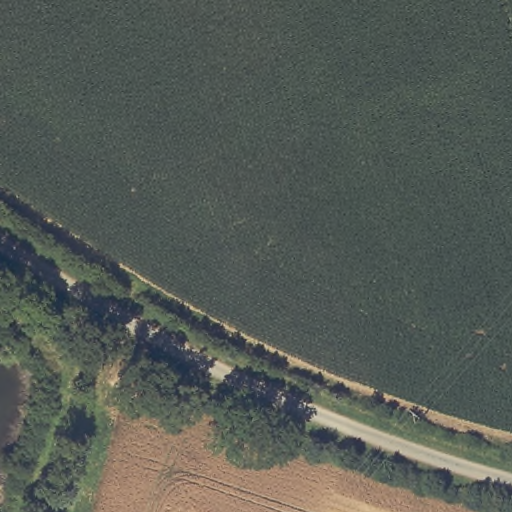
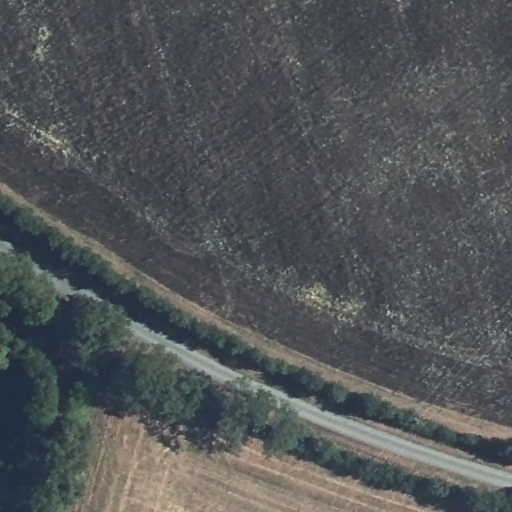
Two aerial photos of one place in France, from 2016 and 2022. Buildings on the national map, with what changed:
[]

